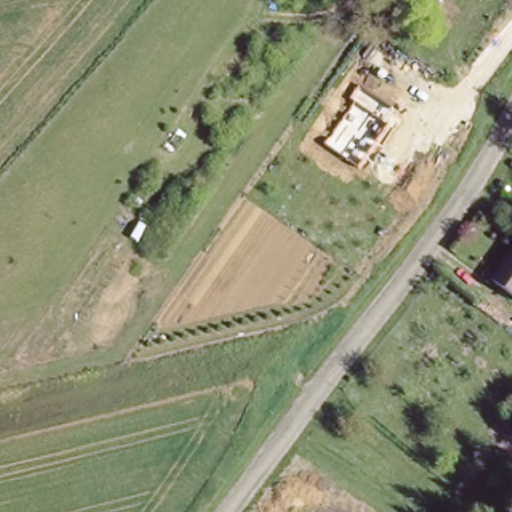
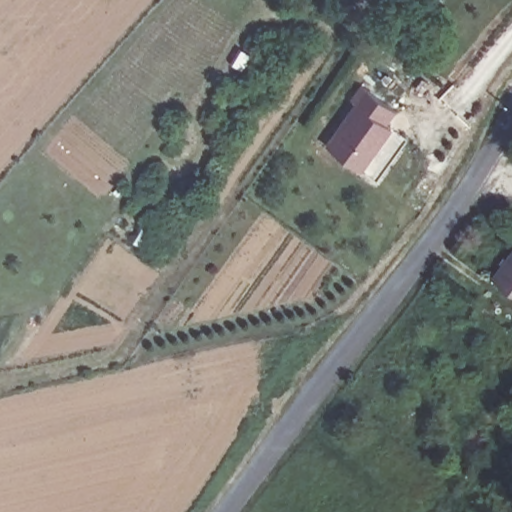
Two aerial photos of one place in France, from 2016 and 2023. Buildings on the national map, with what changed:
demolished [(370,118),(362,132),(318,98),(329,84),(370,118)]
new [(387,125),(393,129),(362,172),(324,146),(363,89),(397,111),(387,125)]
unchanged [(490,278),(512,250),(512,295),(490,278)]

